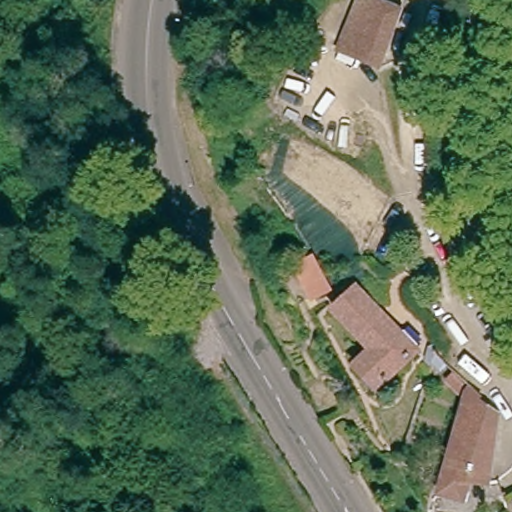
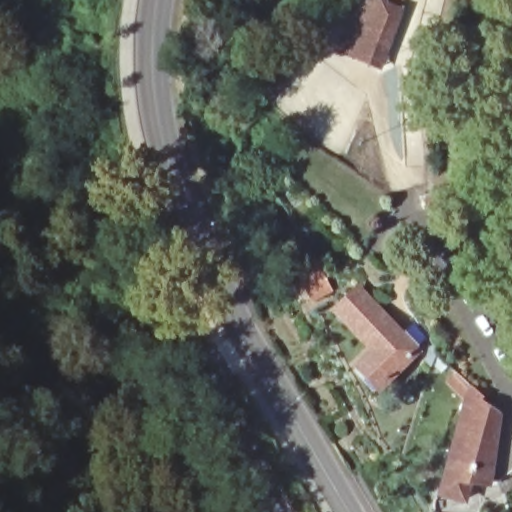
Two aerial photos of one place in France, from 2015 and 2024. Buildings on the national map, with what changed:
unchanged [(340,50),(360,0),(376,0),(380,2),(358,57),(340,50)]
unchanged [(368,62),(358,57),(380,2),(400,11),(382,62),(380,67),(368,62)]
unchanged [(331,290),(316,298),(301,268),(316,260),(331,290)]
unchanged [(420,351),(381,388),(360,366),(377,350),(339,311),(361,290),(420,351)]
unchanged [(441,364),(435,371),(426,362),(429,352),(441,364)]
unchanged [(472,400),(493,414),(484,484),(463,482),(457,500),(433,493),(460,397),(444,380),(451,373),(466,387),(475,396),(472,400)]

